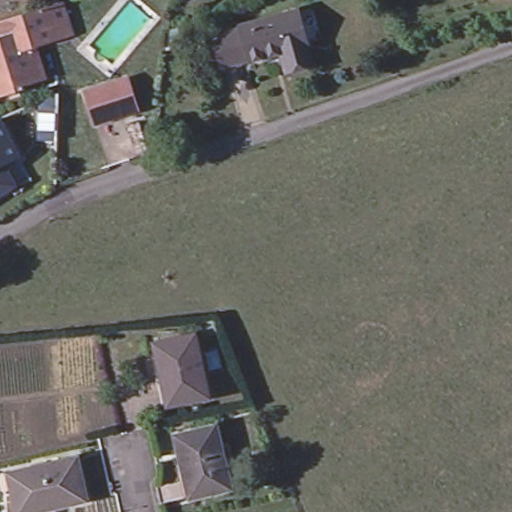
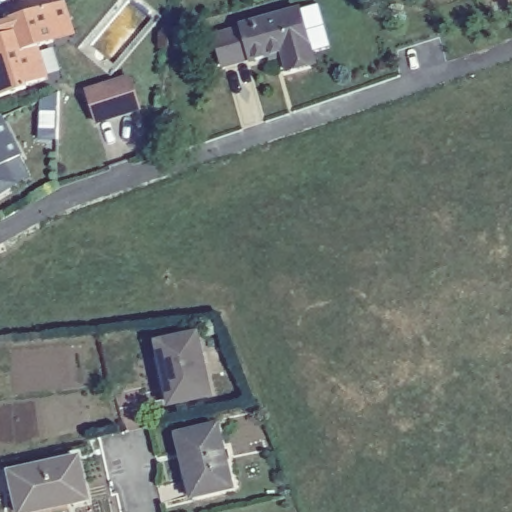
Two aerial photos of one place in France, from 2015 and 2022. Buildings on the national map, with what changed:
unchanged [(22,0),(37,0),(23,4),(22,0)]
unchanged [(75,29),(79,42),(58,48),(42,53),(51,86),(31,91),(32,95),(2,104),(0,94),(0,46),(7,44),(3,29),(50,15),(69,9),(75,29)]
unchanged [(215,41),(243,34),(242,33),(300,16),(313,71),(288,77),(284,60),(252,68),(251,65),(224,73),(215,41)]
unchanged [(118,84),(131,81),(140,111),(127,115),(114,119),(111,119),(96,124),(88,94),(103,89),(116,85),(118,84)]
unchanged [(31,178),(0,198),(0,118),(5,116),(31,178)]
unchanged [(200,344),(215,404),(175,414),(160,354),(200,344)]
unchanged [(218,429),(236,489),(195,502),(177,440),(218,429)]
unchanged [(80,465),(90,506),(61,512),(20,512),(13,479),(80,465)]

